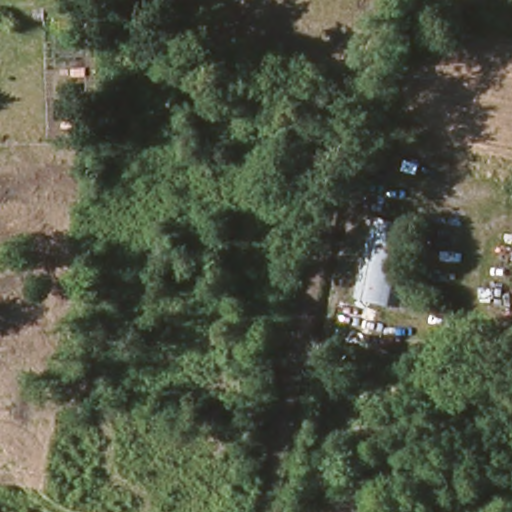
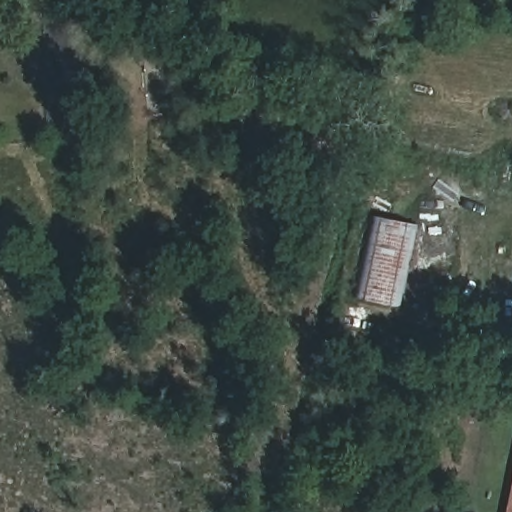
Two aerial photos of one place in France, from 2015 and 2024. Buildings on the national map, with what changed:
unchanged [(392,304),(357,298),(372,217),(408,224),(392,304)]
new [(512,485),(512,512),(506,512),(512,485)]

